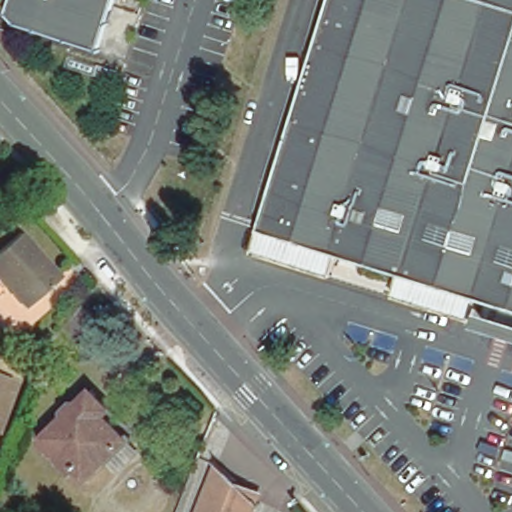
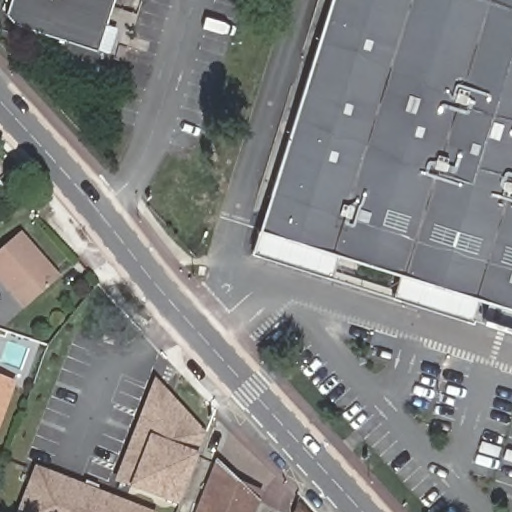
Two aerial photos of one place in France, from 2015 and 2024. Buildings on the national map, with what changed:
unchanged [(4,0),(106,0),(91,44),(10,19),(1,8),(4,0)]
unchanged [(483,320),(490,301),(479,297),(399,272),(337,253),(261,229),(332,0),(512,0),(512,330),(483,320)]
unchanged [(337,253),(331,276),(255,252),(261,229),(337,253)]
unchanged [(0,282),(0,254),(18,238),(55,282),(24,310),(0,282)]
unchanged [(472,321),(391,295),(399,272),(479,297),(472,321)]
new [(155,383),(205,437),(179,503),(117,479),(155,383)]
unchanged [(0,426),(0,390),(11,394),(0,426)]
demolished [(85,478),(75,467),(71,471),(40,440),(65,416),(65,410),(73,401),(80,402),(91,390),(110,408),(104,414),(127,438),(85,478)]
new [(85,485),(86,481),(99,486),(97,490),(152,512),(16,512),(35,465),(85,485)]
unchanged [(235,486),(256,494),(252,504),(249,512),(198,512),(215,465),(235,486)]

